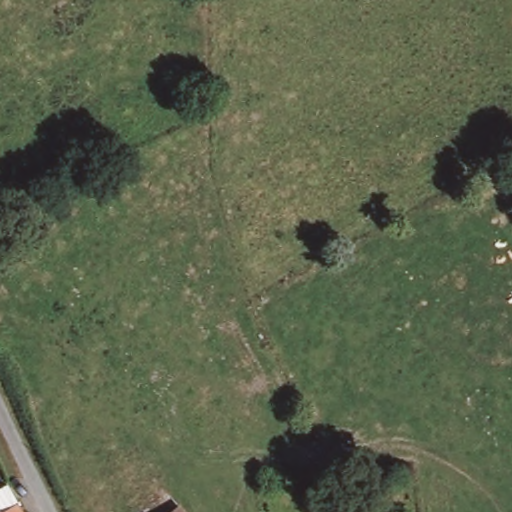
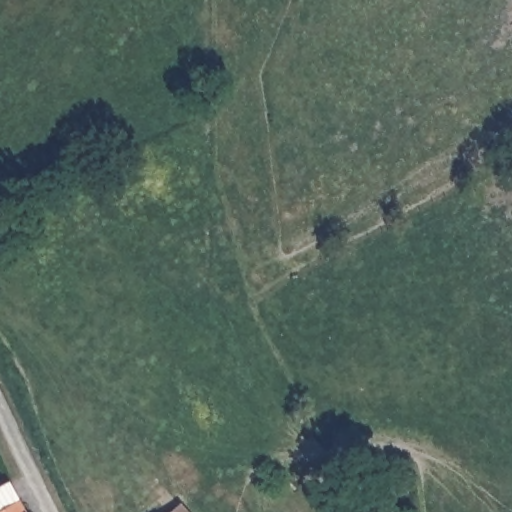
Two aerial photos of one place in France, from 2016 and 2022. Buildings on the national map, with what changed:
unchanged [(5,485),(25,512),(0,512),(0,488),(5,485)]
unchanged [(170,504),(175,506),(182,512),(163,512),(170,504)]

